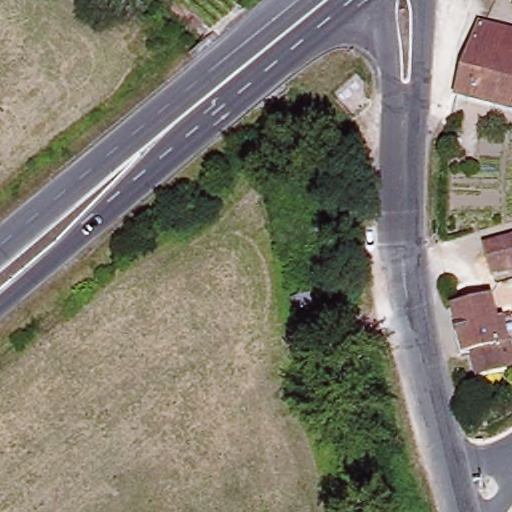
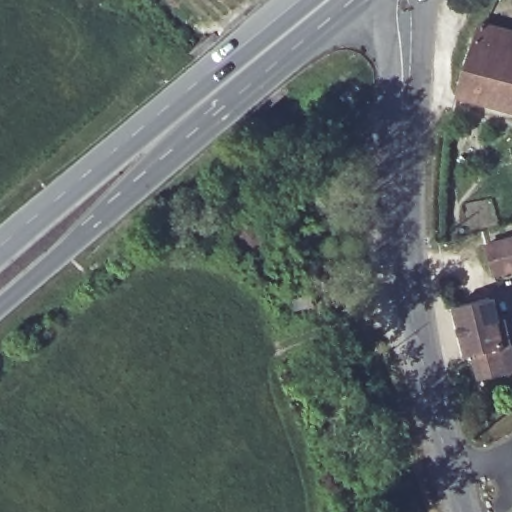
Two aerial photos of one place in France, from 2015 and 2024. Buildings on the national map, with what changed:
unchanged [(512,36),(512,114),(457,100),(480,28),(512,36)]
unchanged [(512,267),(494,272),(486,244),(512,237),(512,267)]
unchanged [(292,312),(289,301),(309,296),(312,306),(292,312)]
unchanged [(473,357),(466,359),(455,310),(490,301),(495,326),(508,323),(512,339),(512,374),(505,376),(479,383),(473,357)]

